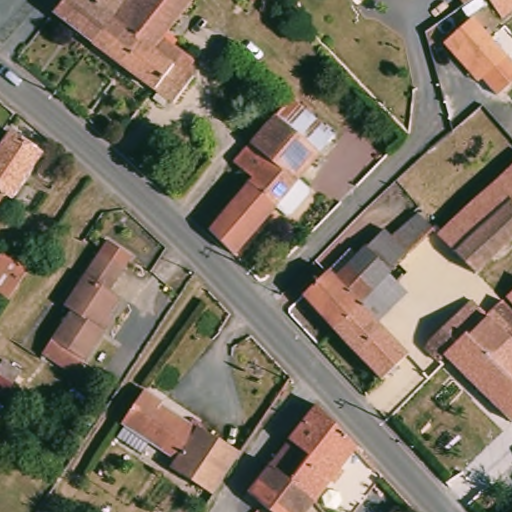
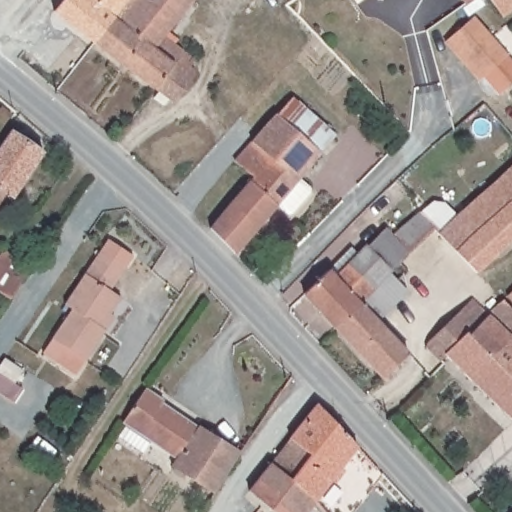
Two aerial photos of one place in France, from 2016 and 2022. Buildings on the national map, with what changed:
unchanged [(67,0),(128,0),(94,42),(94,43),(53,12),(67,0)]
unchanged [(94,43),(94,42),(128,0),(191,0),(164,37),(192,61),(188,67),(192,71),(194,77),(172,104),(168,100),(164,106),(153,97),(157,92),(94,43)]
unchanged [(249,0),(250,0),(250,1),(249,0)]
unchanged [(470,0),(472,0),(471,1),(470,0)]
unchanged [(499,14),(492,4),(490,0),(512,0),(512,10),(502,17),(499,14)]
unchanged [(497,90),(446,36),(469,14),(512,58),(512,76),(502,86),(497,90)]
unchanged [(291,97),(333,135),(319,152),(276,114),(291,97)]
unchanged [(307,194),(291,213),(286,214),(276,205),(235,254),(209,229),(252,177),(234,162),(276,114),(319,152),(296,180),(306,189),(307,194)]
unchanged [(12,137),(42,162),(44,165),(29,187),(14,207),(5,202),(0,210),(0,152),(12,137)]
unchanged [(501,182),(503,180),(512,172),(512,194),(510,192),(501,182)]
unchanged [(454,225),(501,182),(510,192),(512,194),(512,245),(481,273),(468,262),(462,268),(453,259),(459,253),(446,240),(410,274),(400,263),(402,262),(408,256),(432,235),(437,231),(438,229),(442,235),(454,225)]
unchanged [(372,248),(391,231),(398,237),(422,214),(438,229),(437,231),(432,235),(408,256),(402,262),(400,263),(392,270),(393,272),(392,273),(377,289),(372,295),(363,304),(362,303),(345,321),(343,322),(337,328),(305,297),(333,271),(356,250),(362,255),(370,247),(372,248)]
unchanged [(55,337),(75,307),(69,303),(89,273),(108,244),(114,236),(137,252),(114,288),(124,295),(106,324),(106,325),(109,327),(80,373),(47,352),(55,337)]
unchanged [(30,271),(24,280),(9,303),(0,297),(0,258),(3,253),(24,267),(26,264),(32,267),(30,271)]
unchanged [(512,291),(512,303),(506,297),(512,291)]
unchanged [(489,317),(480,326),(474,331),(472,332),(468,332),(461,339),(455,346),(445,356),(446,357),(440,362),(425,347),(456,314),(472,300),(487,315),(489,317)]
unchanged [(446,357),(445,356),(455,346),(461,339),(468,332),(472,332),(474,331),(480,326),(489,317),(487,315),(490,312),(491,312),(503,300),(512,308),(512,421),(447,358),(446,357)]
unchanged [(412,355),(387,380),(337,328),(343,322),(345,321),(362,303),(363,304),(412,355)]
unchanged [(242,452),(216,500),(168,471),(171,462),(122,431),(147,388),(242,452)]
unchanged [(311,498),(291,482),(297,475),(310,457),(290,439),(317,405),(357,446),(332,478),(314,501),(311,498)]
unchanged [(310,457),(297,475),(291,482),(311,498),(314,501),(305,512),(273,512),(252,495),(249,492),(273,462),(290,439),(310,457)]

